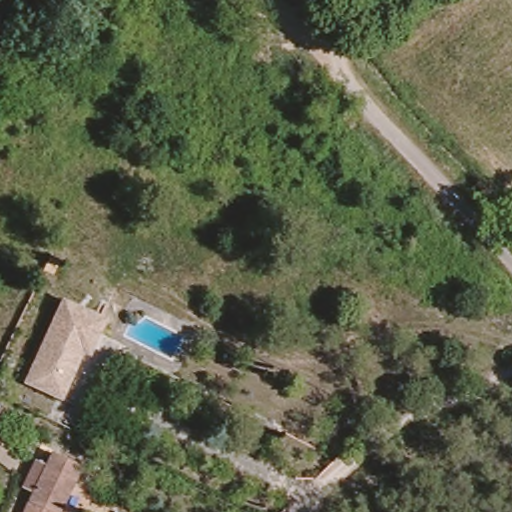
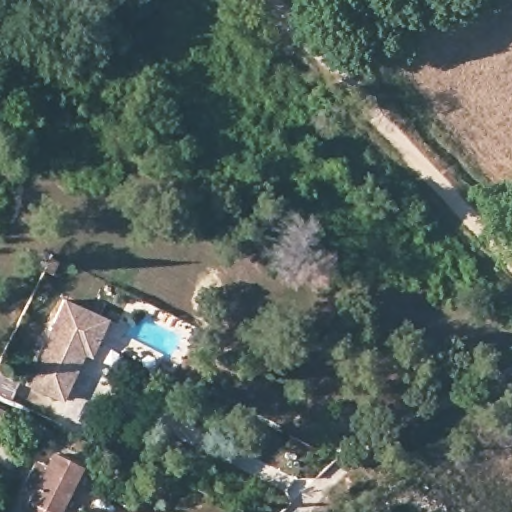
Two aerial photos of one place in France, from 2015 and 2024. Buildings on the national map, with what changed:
unchanged [(58,335),(44,366),(34,361),(60,305),(94,319),(81,346),(58,335)]
unchanged [(25,380),(34,361),(44,366),(58,335),(81,346),(57,396),(25,380)]
unchanged [(6,411),(0,423),(0,408),(6,411)]
unchanged [(34,510),(47,485),(34,479),(49,451),(57,456),(63,443),(91,457),(63,512),(39,512),(34,510)]

